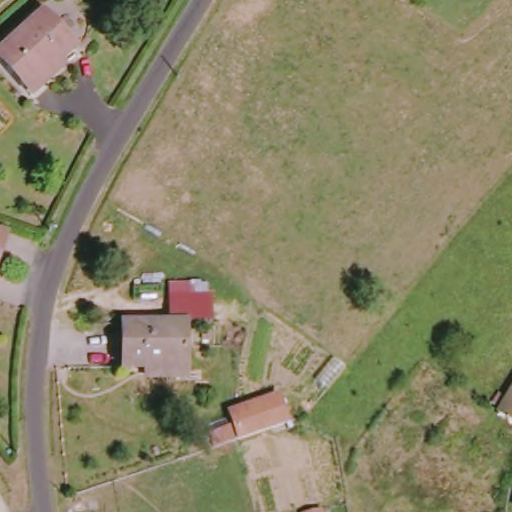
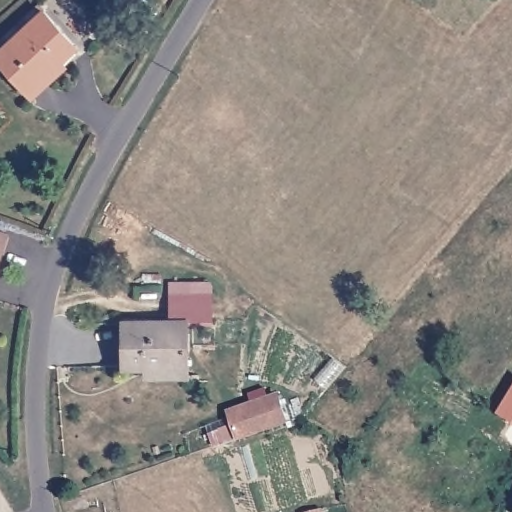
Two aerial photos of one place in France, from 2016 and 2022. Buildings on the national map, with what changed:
unchanged [(0,44),(39,8),(77,49),(61,62),(65,71),(30,99),(0,69),(0,44)]
unchanged [(0,236),(1,236),(0,241),(0,236)]
unchanged [(168,283),(210,284),(211,321),(187,323),(187,326),(175,326),(170,325),(168,283)]
unchanged [(125,325),(187,326),(186,372),(124,372),(125,325)]
unchanged [(497,390),(504,395),(512,385),(512,424),(492,410),(485,405),(497,390)]
unchanged [(223,412),(276,394),(288,425),(236,441),(221,445),(208,449),(204,436),(216,431),(230,428),(223,412)]

